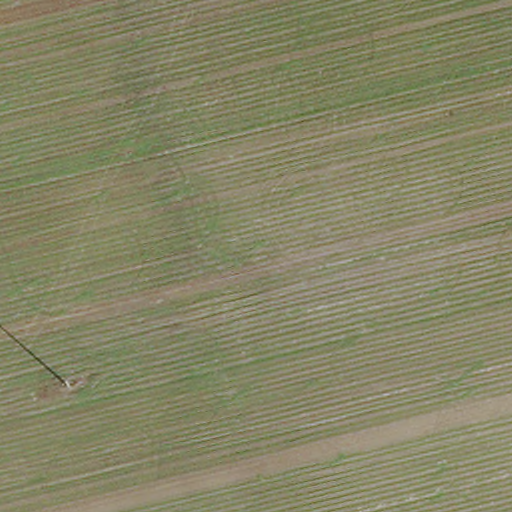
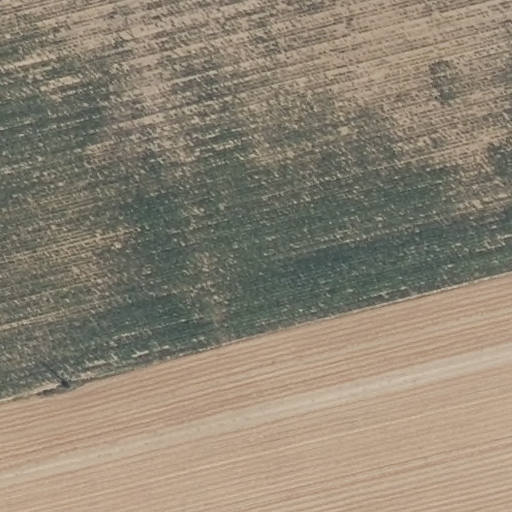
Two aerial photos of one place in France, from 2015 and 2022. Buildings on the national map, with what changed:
[]

